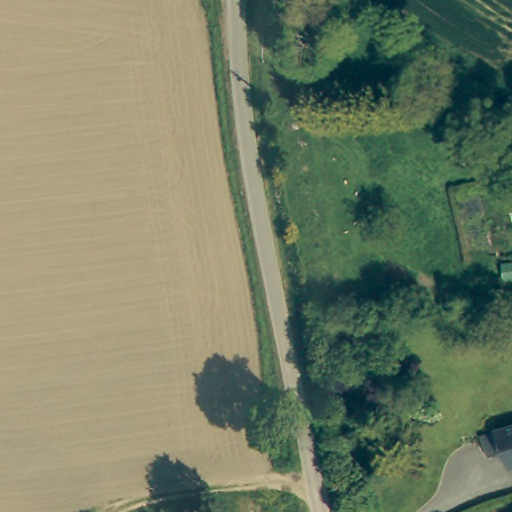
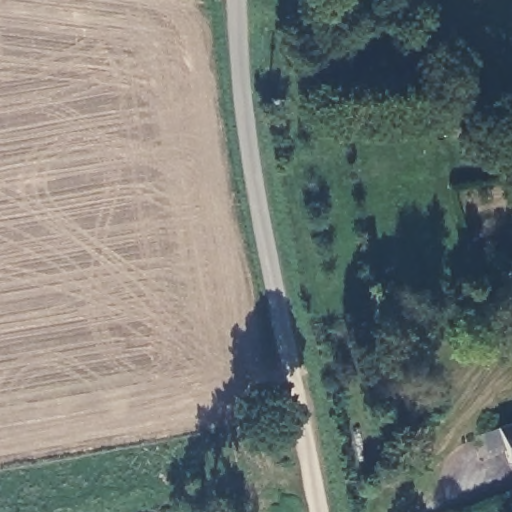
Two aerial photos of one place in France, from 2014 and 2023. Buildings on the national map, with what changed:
unchanged [(481,435),(501,430),(512,425),(512,466),(507,448),(488,455),(481,435)]

